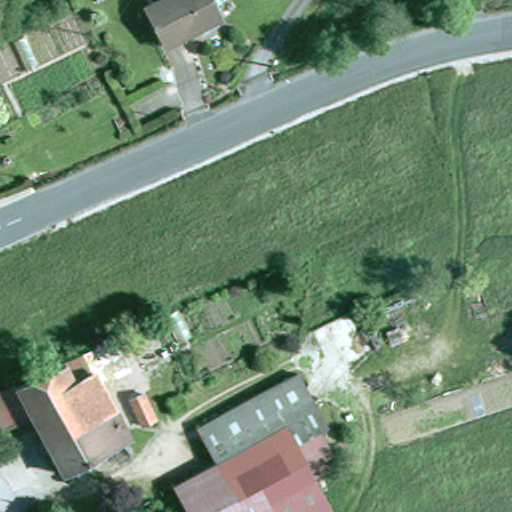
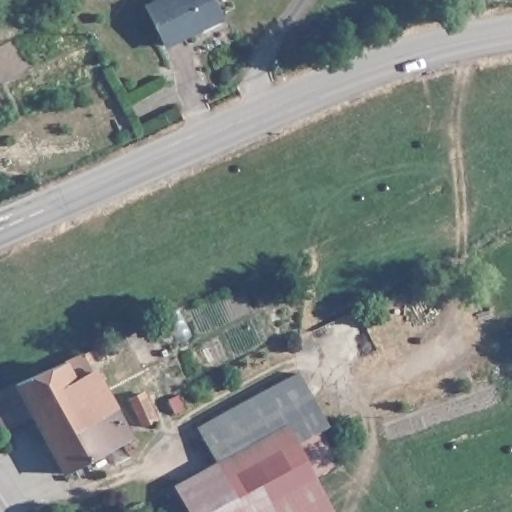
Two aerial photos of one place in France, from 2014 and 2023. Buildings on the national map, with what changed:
unchanged [(159,40),(142,1),(144,0),(207,0),(214,14),(159,40)]
unchanged [(0,388),(3,386),(55,363),(105,340),(115,358),(121,355),(128,368),(131,367),(142,388),(137,391),(151,417),(137,425),(123,398),(109,406),(115,417),(120,415),(122,420),(118,422),(126,436),(58,471),(30,418),(2,430),(0,427),(0,388)]
unchanged [(199,425),(299,372),(317,406),(217,461),(199,425)]
unchanged [(169,399),(180,393),(185,405),(175,410),(169,399)]
unchanged [(217,461),(317,406),(327,424),(318,428),(337,462),(312,475),(245,512),(188,512),(174,485),(217,461)]
unchanged [(328,512),(245,512),(312,475),(332,510),(328,512)]

